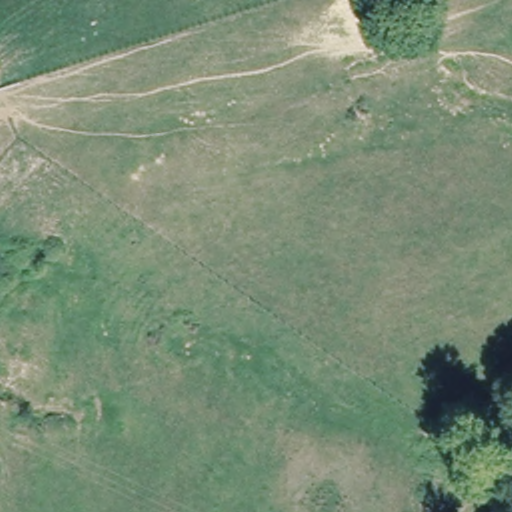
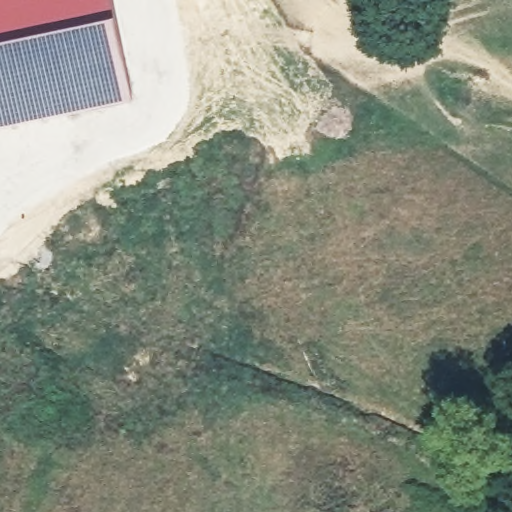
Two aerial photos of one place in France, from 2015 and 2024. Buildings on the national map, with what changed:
new [(116,15),(0,40),(0,0),(113,0),(116,15)]
new [(116,15),(135,101),(7,126),(0,127),(0,40),(116,15)]

